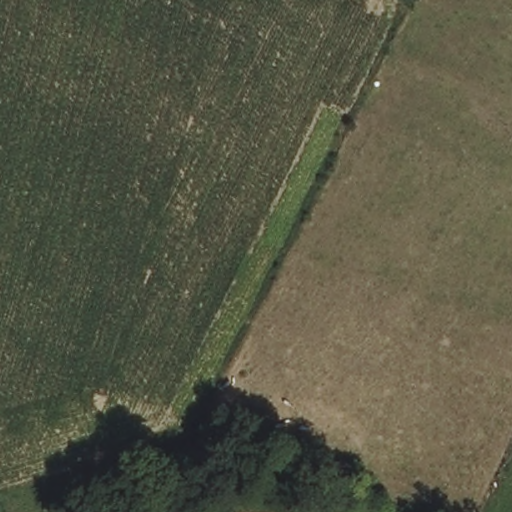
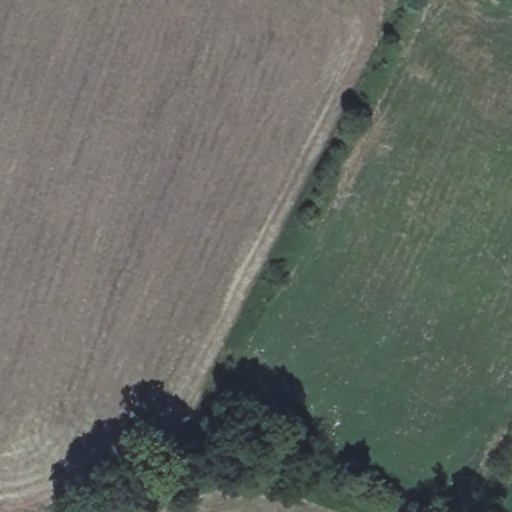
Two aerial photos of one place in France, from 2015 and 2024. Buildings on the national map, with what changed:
[]

